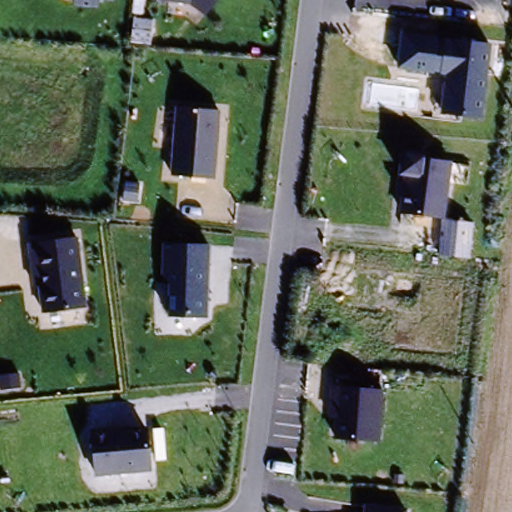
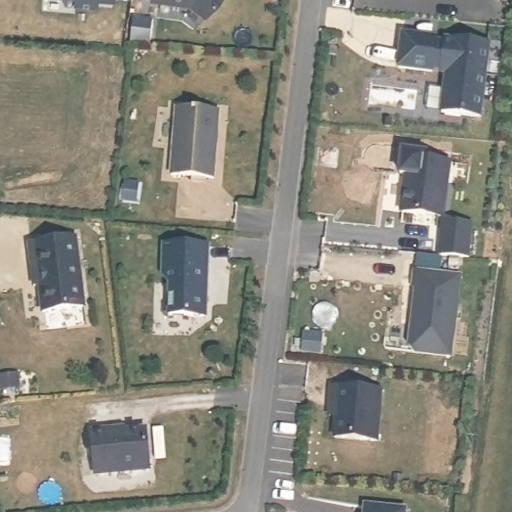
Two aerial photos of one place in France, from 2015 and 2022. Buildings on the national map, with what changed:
unchanged [(97,0),(97,8),(72,5),(72,0),(113,0),(113,1),(97,0)]
unchanged [(189,4),(161,0),(218,0),(204,17),(189,4)]
unchanged [(490,45),(481,124),(437,119),(441,79),(395,72),(398,35),(490,45)]
unchanged [(217,110),(213,185),(169,180),(173,105),(217,110)]
unchanged [(429,156),(428,161),(449,164),(443,224),(399,219),(404,181),(399,180),(402,155),(429,156)]
new [(443,219),(474,225),(471,258),(440,255),(443,224),(443,219)]
unchanged [(75,239),(84,313),(41,319),(37,289),(30,290),(25,245),(75,239)]
unchanged [(209,247),(207,322),(169,319),(168,287),(159,278),(160,245),(209,247)]
new [(462,276),(454,359),(414,353),(407,341),(413,285),(412,285),(413,270),(462,276)]
unchanged [(381,390),(376,445),(334,439),(336,420),(324,420),(327,387),(381,390)]
unchanged [(149,427),(149,428),(149,431),(161,430),(164,461),(153,463),(154,473),(93,479),(88,431),(149,427)]
unchanged [(407,510),(407,512),(361,512),(362,503),(407,510)]

